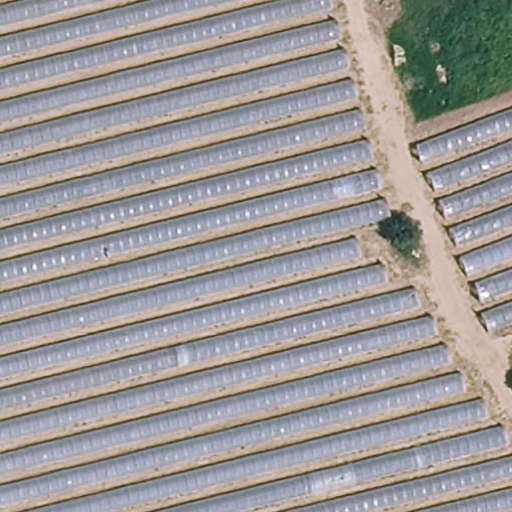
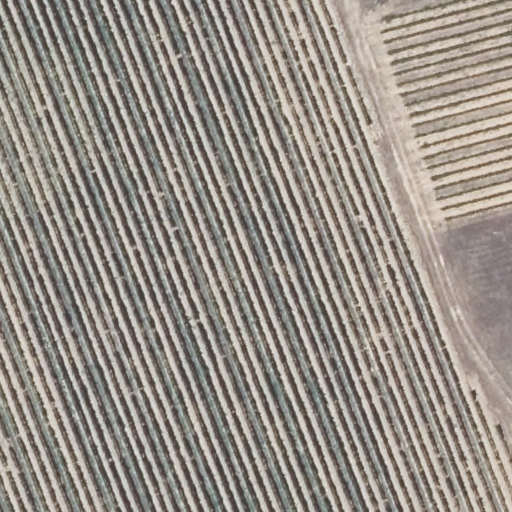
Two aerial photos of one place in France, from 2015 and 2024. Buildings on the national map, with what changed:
demolished [(393,215),(355,223),(365,265),(384,261),(390,288),(416,285),(424,313),(435,312),(442,339),(447,339),(455,371),(464,370),(471,399),(485,397),(497,425),(503,425),(512,452),(512,512),(0,512),(0,0),(333,0),(393,215)]
demolished [(512,105),(512,320),(492,327),(419,141),(512,105)]

